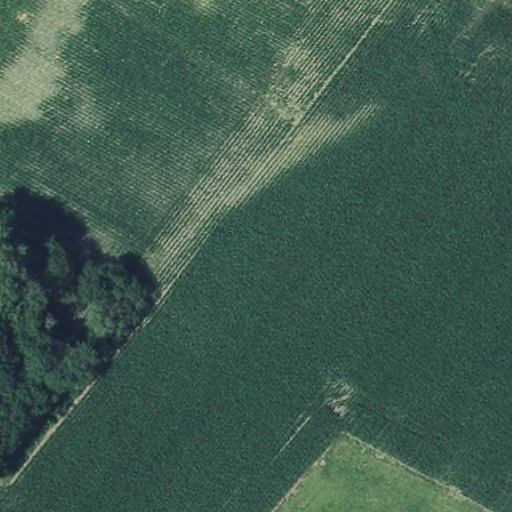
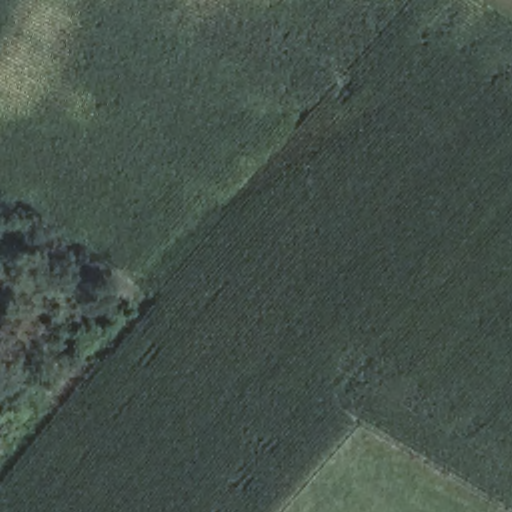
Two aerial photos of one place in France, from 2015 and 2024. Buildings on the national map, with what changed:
[]

